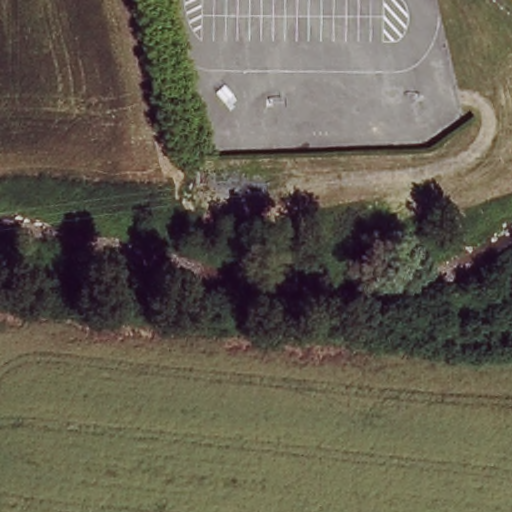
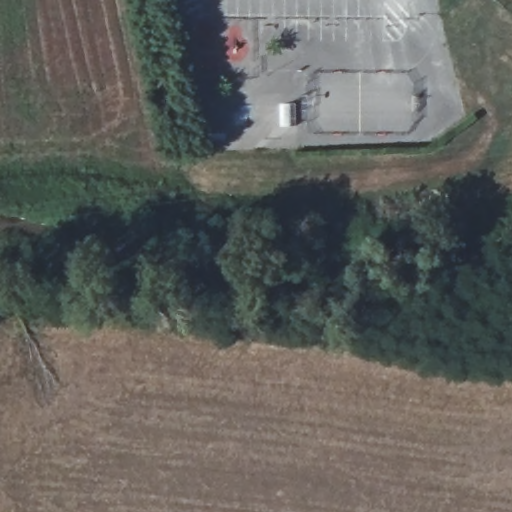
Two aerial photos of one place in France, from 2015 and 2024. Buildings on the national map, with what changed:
[]

